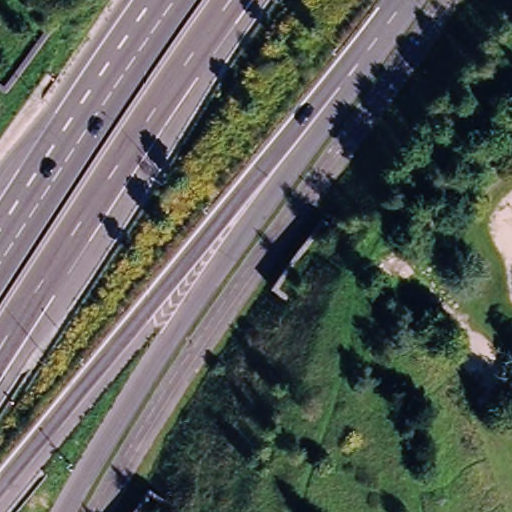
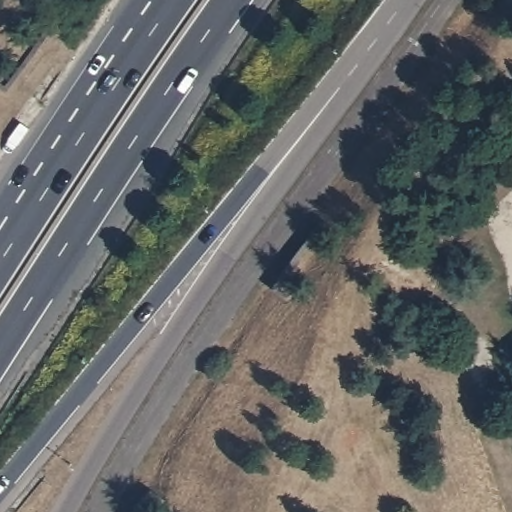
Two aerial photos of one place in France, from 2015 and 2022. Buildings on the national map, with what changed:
[]

